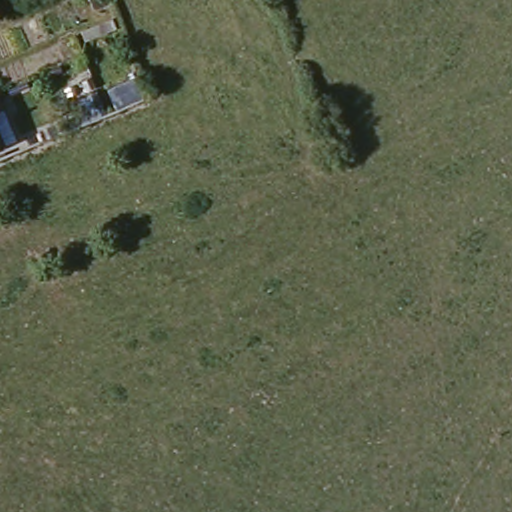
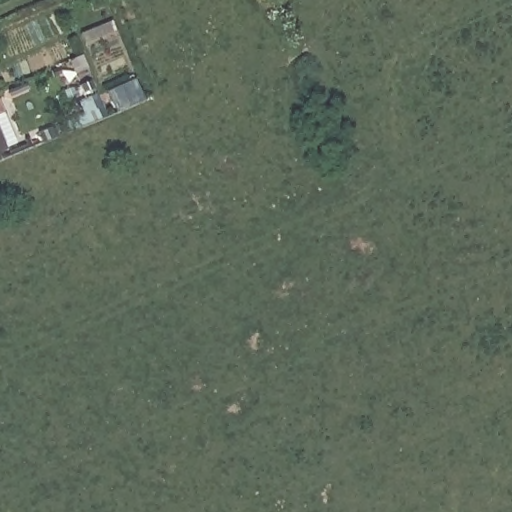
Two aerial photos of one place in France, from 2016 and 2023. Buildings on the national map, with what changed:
unchanged [(140,79),(151,101),(123,117),(112,90),(140,79)]
unchanged [(1,152),(0,152),(0,151),(1,152)]

